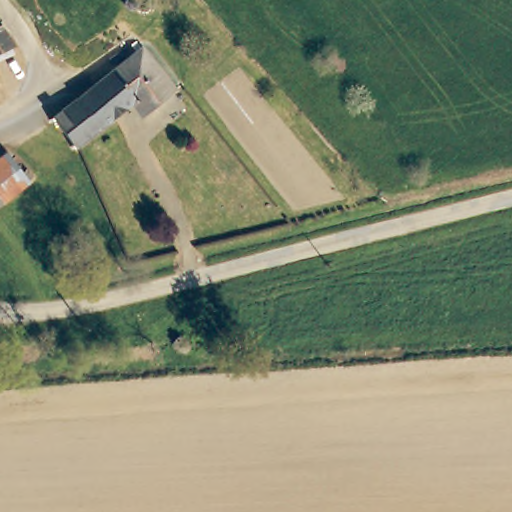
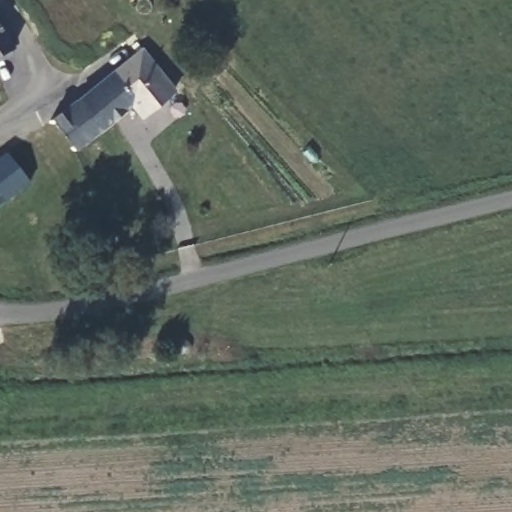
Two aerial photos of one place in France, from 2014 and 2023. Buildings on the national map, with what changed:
unchanged [(153,4),(154,11),(148,14),(137,14),(136,7),(141,2),(150,0),(153,4)]
unchanged [(15,48),(0,53),(0,24),(15,48)]
unchanged [(137,54),(134,48),(139,44),(175,92),(143,119),(132,107),(140,100),(114,71),(137,54)]
unchanged [(76,100),(114,71),(140,100),(132,107),(101,131),(76,100)]
unchanged [(52,117),(76,100),(101,131),(95,136),(77,149),(52,117)]
unchanged [(0,206),(0,159),(5,156),(31,185),(0,206)]
unchanged [(192,340),(193,348),(186,352),(177,348),(177,339),(184,334),(192,340)]

